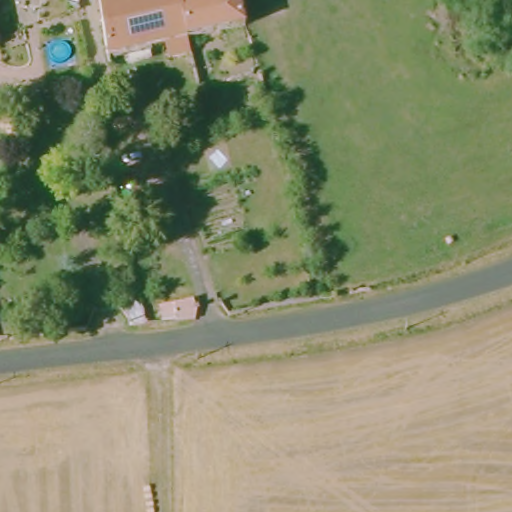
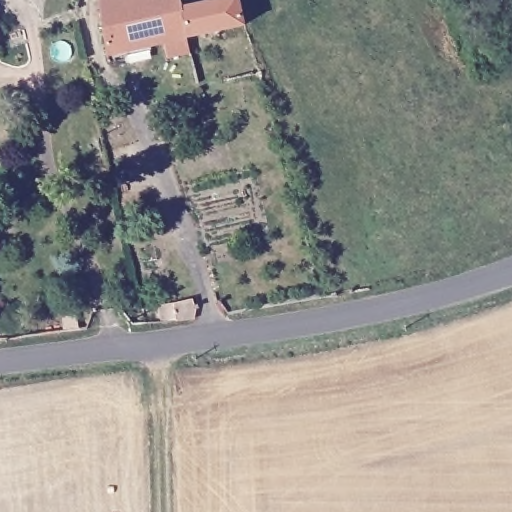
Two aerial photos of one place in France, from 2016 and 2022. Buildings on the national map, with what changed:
unchanged [(171,41),(120,51),(120,60),(129,59),(130,65),(114,67),(104,0),(184,0),(185,4),(192,37),(195,48),(174,51),(171,41)]
unchanged [(185,4),(215,0),(241,0),(249,26),(192,37),(185,4)]
unchanged [(181,299),(206,293),(211,315),(185,319),(181,299)]

